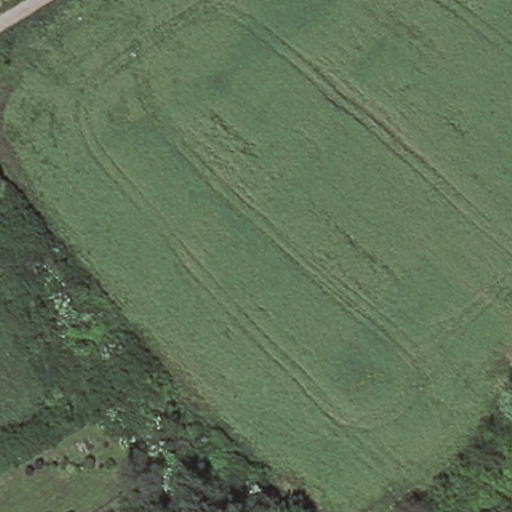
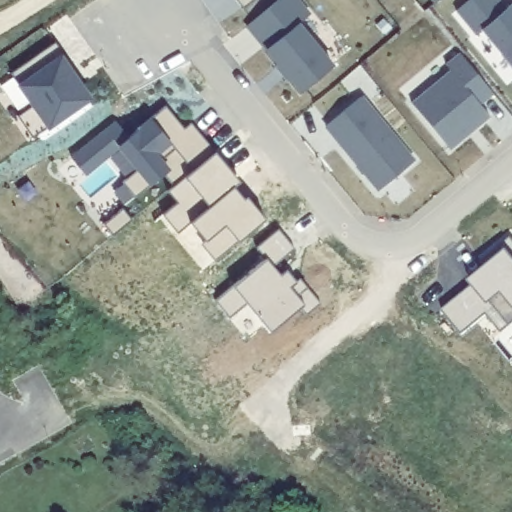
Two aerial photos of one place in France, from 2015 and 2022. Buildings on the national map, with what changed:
new [(254,0),(243,9),(236,0),(254,0)]
new [(300,0),(312,14),(301,24),(334,64),(299,94),(262,50),(247,27),(281,0),(300,0)]
new [(432,0),(441,0),(436,4),(432,0)]
new [(456,11),(470,0),(499,0),(506,9),(512,4),(512,68),(482,31),(476,35),(456,11)]
new [(0,92),(0,82),(55,43),(77,73),(73,76),(89,98),(32,138),(0,92)]
new [(410,103),(450,71),(444,65),(461,52),(495,95),(483,107),(492,117),(449,150),(410,103)]
new [(323,127),(364,93),(416,159),(377,191),(323,127)]
new [(184,130),(192,123),(217,154),(174,189),(163,177),(109,224),(60,171),(117,123),(128,136),(167,107),(184,130)]
new [(217,155),(242,182),(236,187),(245,201),(250,198),(267,221),(216,262),(204,245),(207,241),(192,223),(179,233),(164,215),(179,203),(170,192),(217,155)]
new [(266,259),(256,248),(279,229),(295,249),(273,266),(280,275),(286,270),(295,281),(300,278),(321,304),(307,316),(300,308),(270,333),(247,304),(230,318),(215,301),(266,259)]
new [(489,272),(481,262),(511,238),(512,239),(512,321),(503,328),(490,313),(463,336),(442,311),(489,272)]

